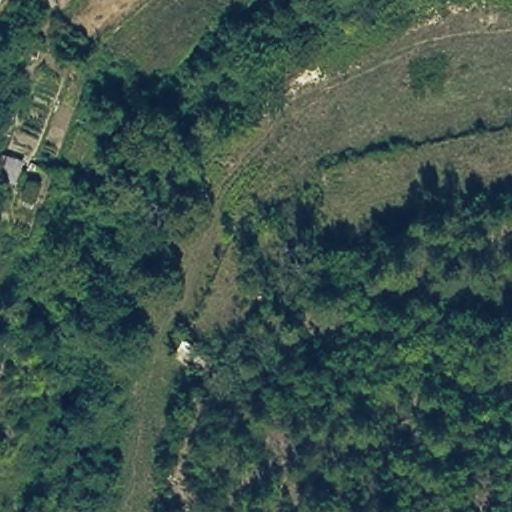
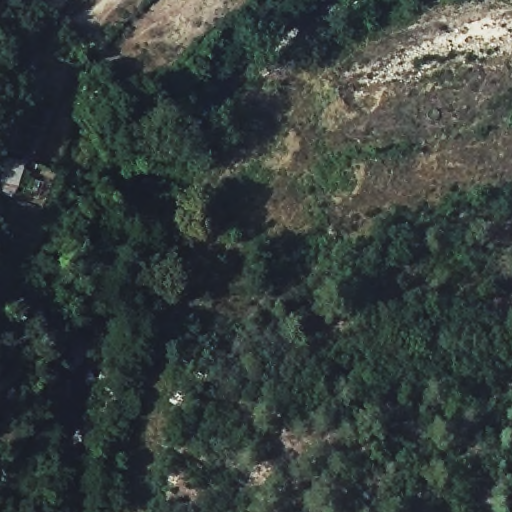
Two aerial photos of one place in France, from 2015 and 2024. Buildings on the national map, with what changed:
unchanged [(0,188),(0,178),(7,155),(33,161),(19,194),(0,188)]

